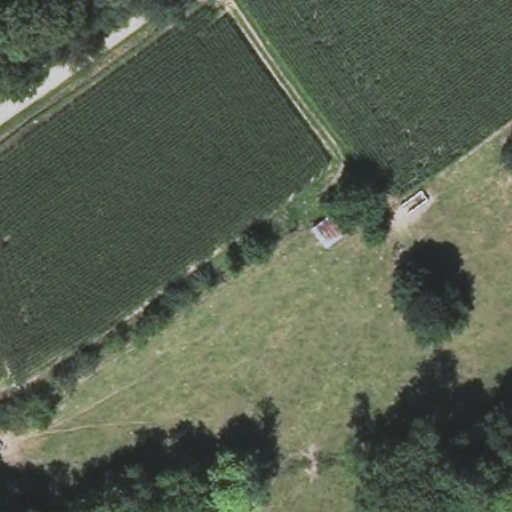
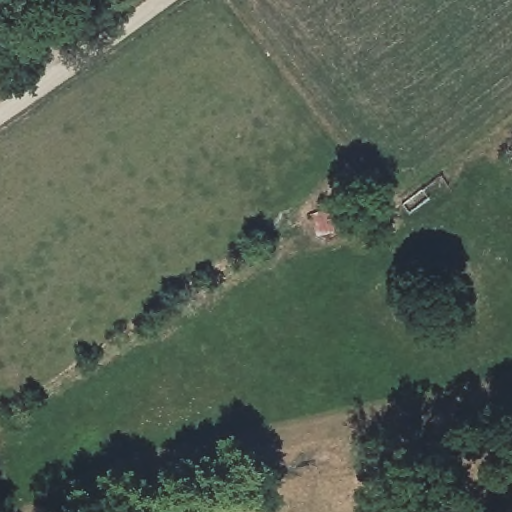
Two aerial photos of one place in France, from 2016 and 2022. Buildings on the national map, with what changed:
unchanged [(330,243),(317,218),(342,202),(357,223),(330,243)]

